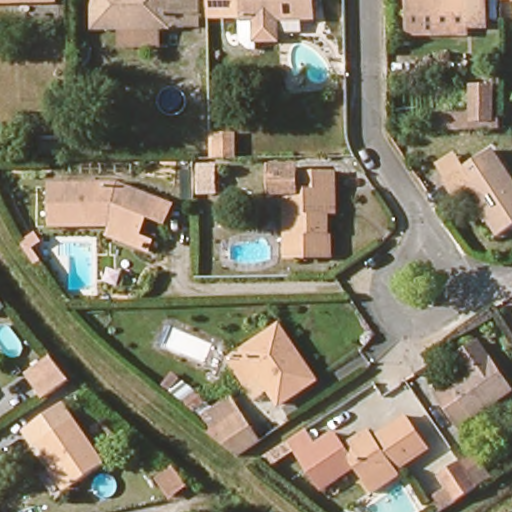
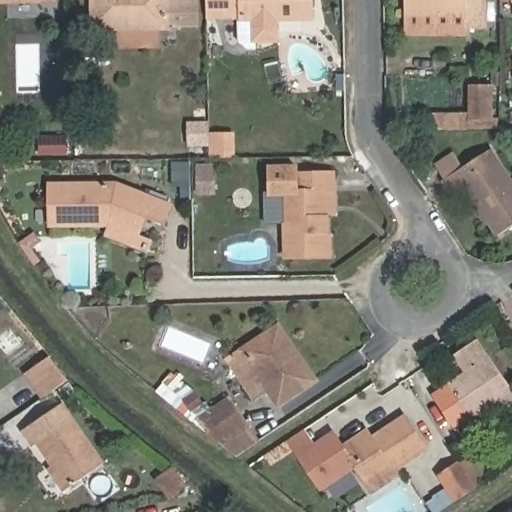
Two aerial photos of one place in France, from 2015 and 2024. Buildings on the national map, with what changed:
unchanged [(0,2),(0,0),(55,0),(55,2),(0,2)]
unchanged [(198,30),(174,30),(175,32),(159,34),(157,48),(130,47),(129,31),(90,32),(90,0),(198,0),(198,30)]
unchanged [(278,20),(278,36),(256,36),(256,21),(243,21),(243,18),(225,19),(225,0),(314,0),(314,20),(278,20)]
unchanged [(487,26),(465,26),(464,22),(464,16),(435,16),(407,15),(408,0),(487,0),(487,26)]
unchanged [(472,95),(493,94),(493,123),(493,128),(471,127),(471,121),(472,95)]
unchanged [(210,137),(234,137),(234,154),(211,154),(210,137)]
unchanged [(465,187),(453,195),(445,181),(475,162),(493,150),(512,178),(512,227),(498,236),(465,187)]
unchanged [(331,217),(331,261),(282,260),(282,197),(271,197),(271,167),(300,167),(300,174),(336,173),(336,217),(331,217)]
unchanged [(117,184),(156,199),(149,219),(143,235),(110,222),(110,225),(50,226),(50,184),(117,184)]
unchanged [(37,233),(43,242),(34,247),(44,261),(36,266),(20,244),(37,233)]
unchanged [(1,302),(4,306),(0,309),(0,300),(1,302)]
unchanged [(316,384),(276,406),(261,382),(246,392),(226,360),(279,325),(316,384)]
unchanged [(458,428),(436,395),(467,374),(456,357),(478,342),(511,392),(458,428)]
unchanged [(54,359),(70,383),(64,387),(48,398),(31,373),(54,359)]
unchanged [(196,392),(205,403),(191,413),(182,401),(196,392)]
unchanged [(205,423),(235,405),(255,432),(234,447),(205,423)]
unchanged [(24,432),(59,409),(100,468),(67,493),(24,432)]
unchanged [(317,445),(334,433),(344,445),(371,431),(376,437),(406,415),(428,450),(397,470),(401,477),(371,493),(363,480),(332,501),(325,492),(321,495),(295,452),(268,468),(263,461),(306,432),(317,445)]
unchanged [(486,469),(491,477),(476,487),(461,497),(454,502),(438,477),(460,463),(471,480),(486,469)]

